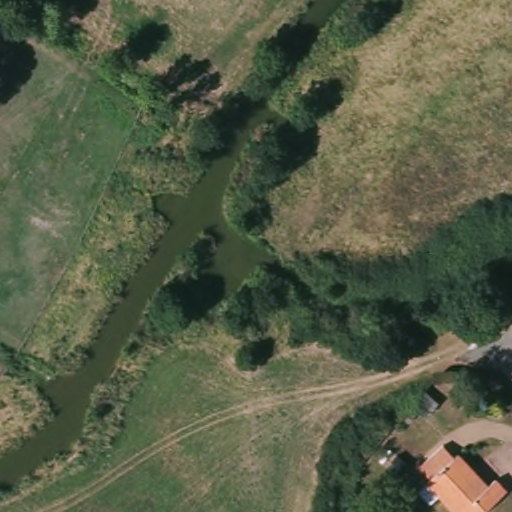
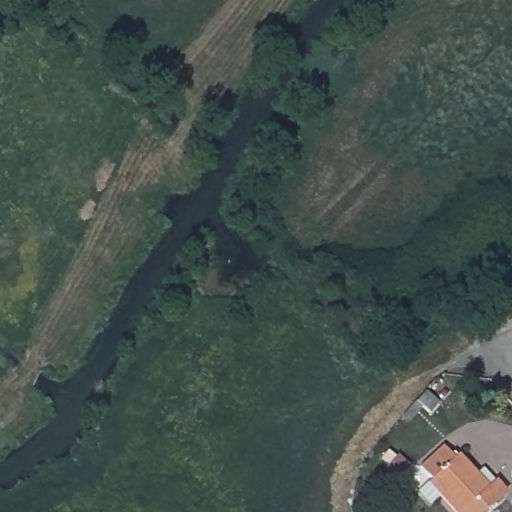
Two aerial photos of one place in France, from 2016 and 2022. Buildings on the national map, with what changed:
unchanged [(437,386),(446,381),(457,393),(447,402),(434,389),(437,386)]
unchanged [(415,461),(439,438),(481,487),(491,479),(501,493),(478,512),(448,512),(431,493),(420,502),(408,489),(425,472),(415,461)]
unchanged [(410,467),(398,479),(386,467),(398,455),(410,467)]

